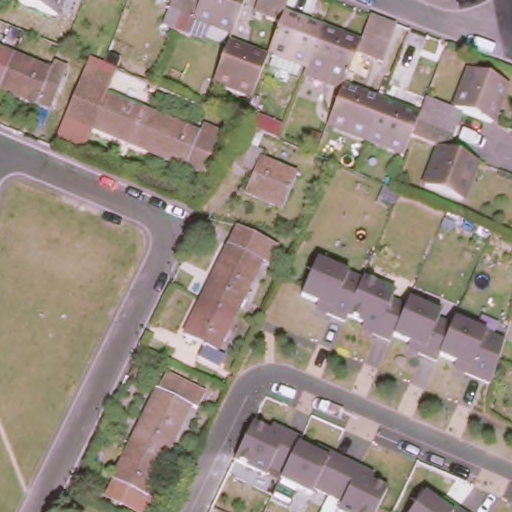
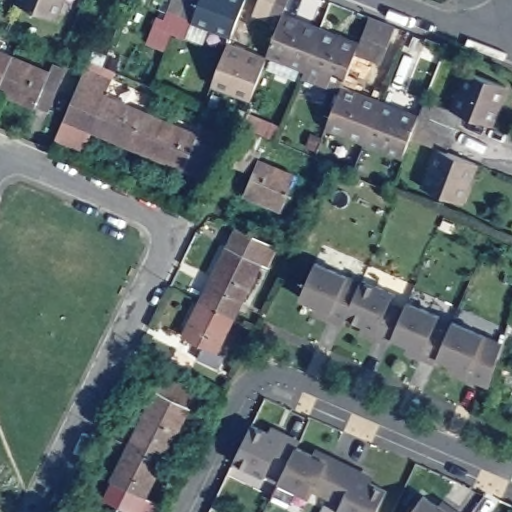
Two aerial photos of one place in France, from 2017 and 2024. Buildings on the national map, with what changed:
unchanged [(19,1),(19,0),(62,0),(57,15),(19,1)]
unchanged [(183,13),(172,8),(174,0),(246,0),(234,31),(197,18),(183,13)]
unchanged [(270,52),(282,21),(269,16),(256,11),(260,0),(290,0),(285,14),(324,29),(309,66),(270,52)]
unchanged [(361,43),(372,13),(386,18),(399,23),(385,60),(372,56),(358,49),(346,81),(309,66),(324,29),(361,43)]
unchanged [(229,44),(267,59),(253,96),(215,81),(229,44)]
unchanged [(0,50),(17,57),(4,91),(0,89),(0,50)]
unchanged [(41,106),(4,91),(17,57),(55,73),(59,62),(72,68),(63,88),(54,111),(41,106)]
unchanged [(425,187),(441,146),(412,136),(406,153),(368,139),(382,103),(420,116),(422,111),(427,97),(456,108),(471,69),(507,83),(492,122),(462,111),(457,124),(452,136),(447,149),(477,161),(462,201),(425,187)]
unchanged [(107,96),(162,118),(149,153),(66,118),(83,74),(112,86),(107,96)]
unchanged [(343,89),(382,103),(368,139),(330,125),(343,89)]
unchanged [(201,135),(204,125),(224,133),(206,177),(149,153),(162,118),(201,135)]
unchanged [(246,199),(257,175),(243,169),(252,150),(265,155),(261,166),(298,181),(285,214),(246,199)]
unchanged [(278,242),(270,260),(262,257),(236,311),(204,295),(239,224),(278,242)]
unchanged [(398,292),(394,303),(405,307),(407,301),(444,316),(442,323),(451,326),(454,321),(504,343),(491,389),(451,374),(453,366),(439,361),(435,367),(405,353),(407,346),(392,340),(389,346),(357,333),(360,326),(347,321),(345,327),(312,312),(315,305),(300,299),(317,261),(398,292)]
unchanged [(205,355),(211,343),(187,331),(204,295),(236,311),(219,347),(231,353),(226,365),(205,355)]
unchanged [(137,444),(171,376),(211,395),(202,412),(196,408),(170,460),(137,444)]
unchanged [(270,429),(272,425),(302,439),(300,445),(316,453),(318,448),(376,476),(372,482),(388,490),(377,512),(337,512),(341,505),(315,494),(312,497),(278,481),(280,476),(269,472),(267,477),(234,463),(252,424),(270,429)]
unchanged [(137,444),(170,460),(152,497),(167,505),(164,512),(140,512),(118,501),(111,497),(119,482),(137,444)]
unchanged [(453,512),(412,512),(426,493),(453,512)]
unchanged [(456,509),(461,512),(453,512),(456,509)]

